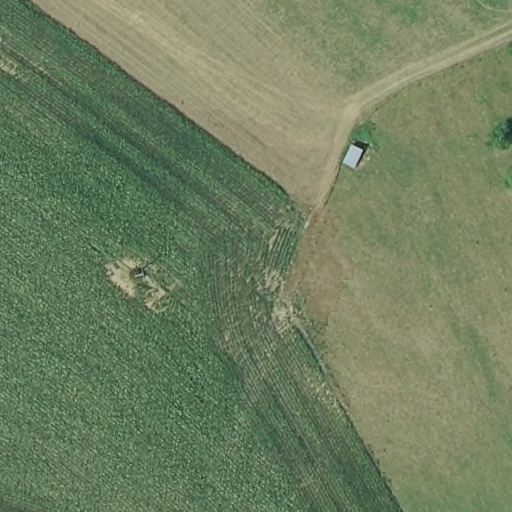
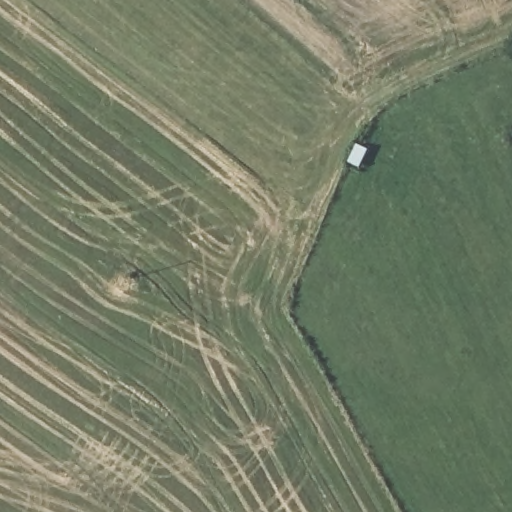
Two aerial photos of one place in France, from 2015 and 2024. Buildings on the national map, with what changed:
unchanged [(345,166),(352,142),(368,148),(359,168),(345,166)]

